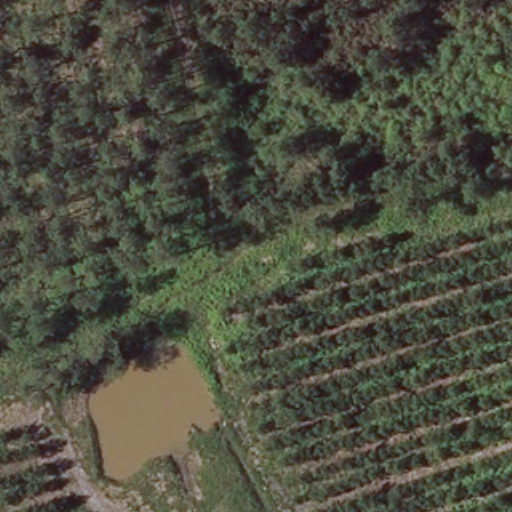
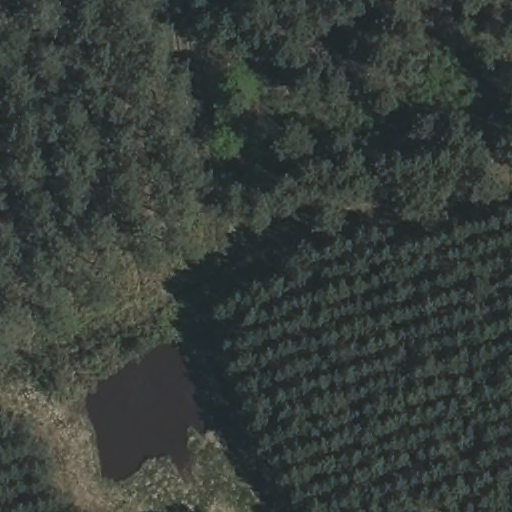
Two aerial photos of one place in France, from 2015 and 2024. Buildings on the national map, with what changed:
[]

